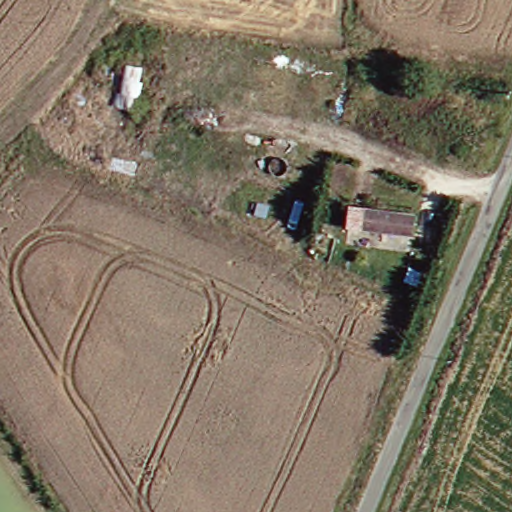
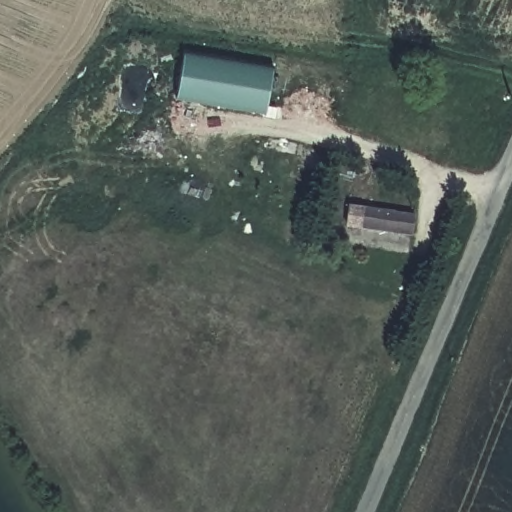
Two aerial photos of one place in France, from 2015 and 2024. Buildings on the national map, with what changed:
new [(265,115),(176,100),(184,52),(273,67),(265,115)]
demolished [(135,69),(121,127),(100,122),(113,63),(135,69)]
unchanged [(402,236),(338,228),(340,208),(405,216),(402,236)]

